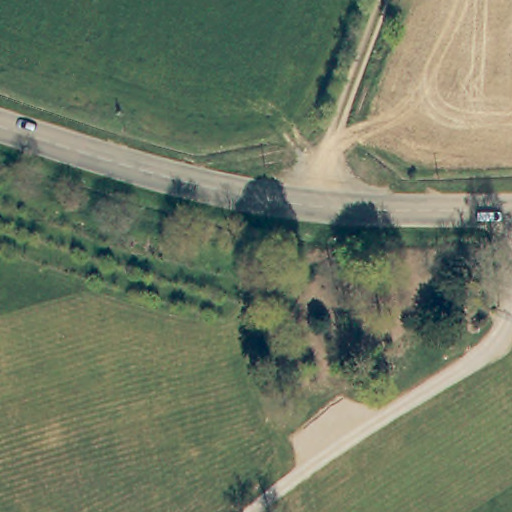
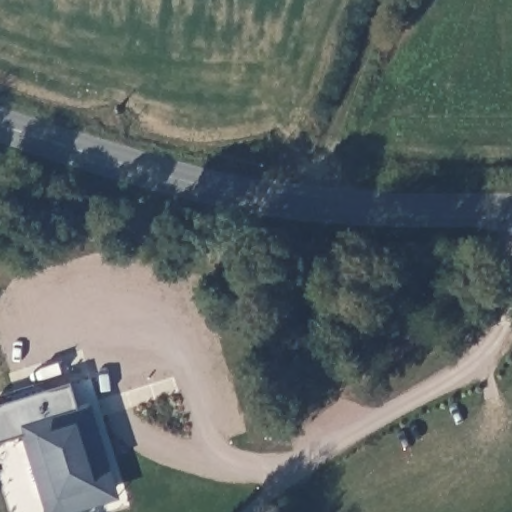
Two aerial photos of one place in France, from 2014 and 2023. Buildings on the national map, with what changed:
new [(71,385),(79,406),(91,403),(122,501),(85,512),(47,512),(24,436),(0,442),(0,408),(71,385)]

